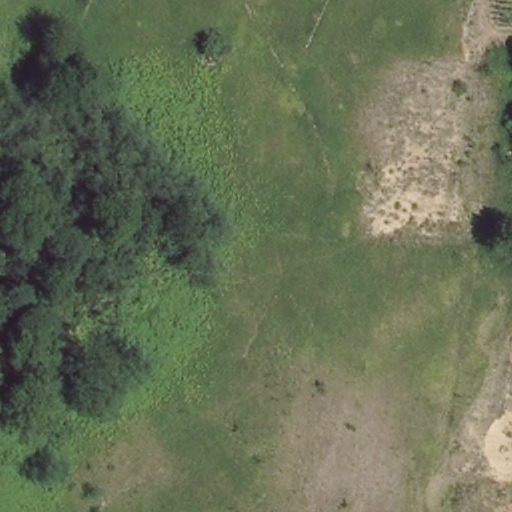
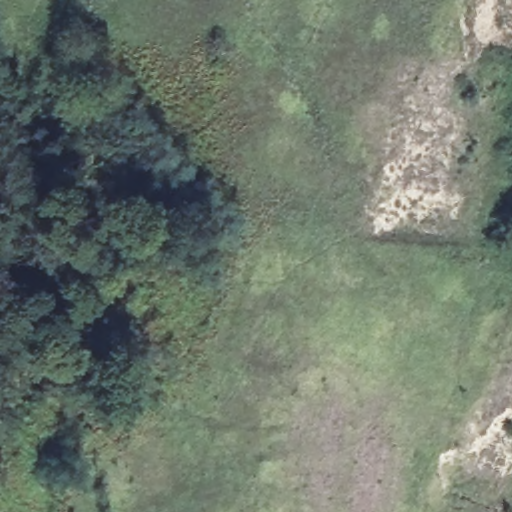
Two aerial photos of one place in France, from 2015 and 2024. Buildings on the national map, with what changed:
[]

